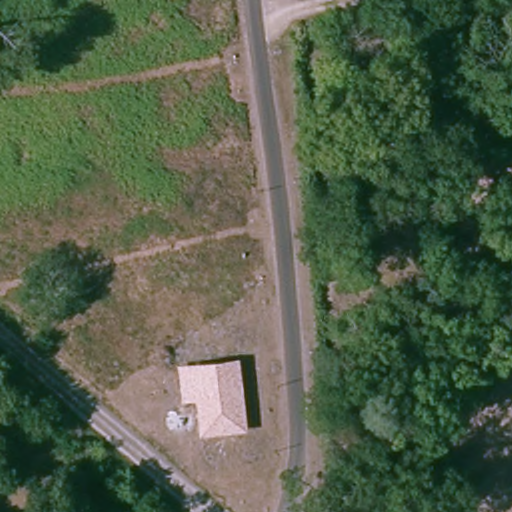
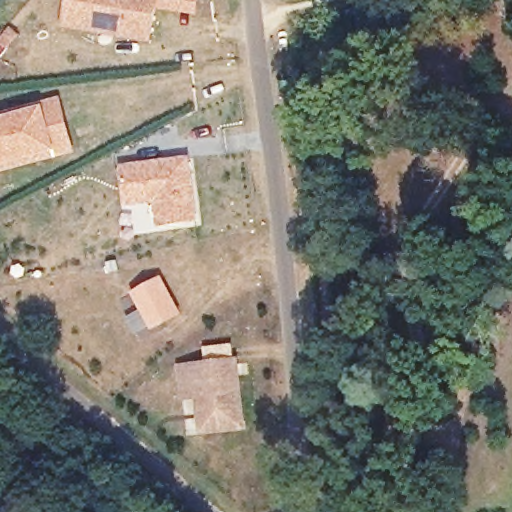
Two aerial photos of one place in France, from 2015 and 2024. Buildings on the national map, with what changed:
new [(67,0),(155,0),(147,42),(121,37),(95,33),(62,27),(67,0)]
new [(57,105),(58,110),(70,155),(0,174),(0,120),(57,105)]
new [(176,162),(194,159),(202,221),(165,227),(161,203),(132,207),(127,169),(158,164),(176,162)]
new [(135,297),(163,283),(182,319),(153,333),(143,340),(134,322),(145,317),(135,297)]
unchanged [(249,433),(198,439),(194,401),(181,403),(178,366),(240,357),(249,433)]

